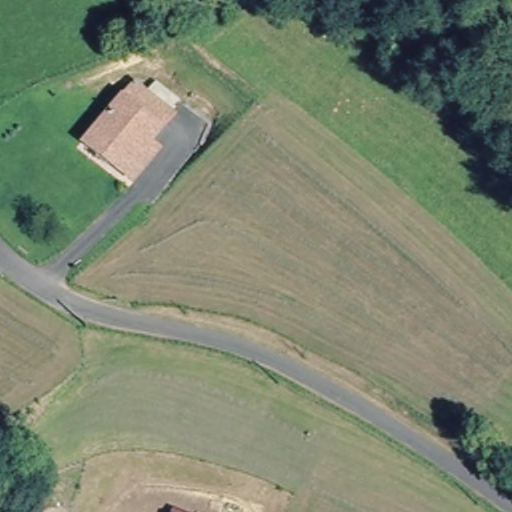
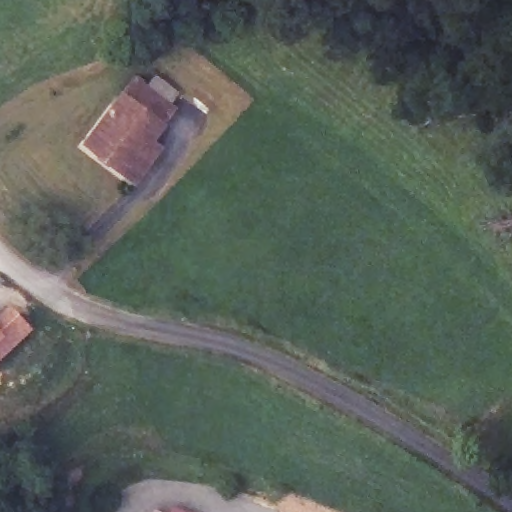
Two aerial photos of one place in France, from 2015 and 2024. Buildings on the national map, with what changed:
unchanged [(138,182),(128,175),(86,144),(131,77),(172,109),(151,142),(161,147),(138,182)]
new [(10,303),(33,327),(0,359),(0,311),(10,303)]
unchanged [(187,512),(168,512),(171,506),(187,512)]

